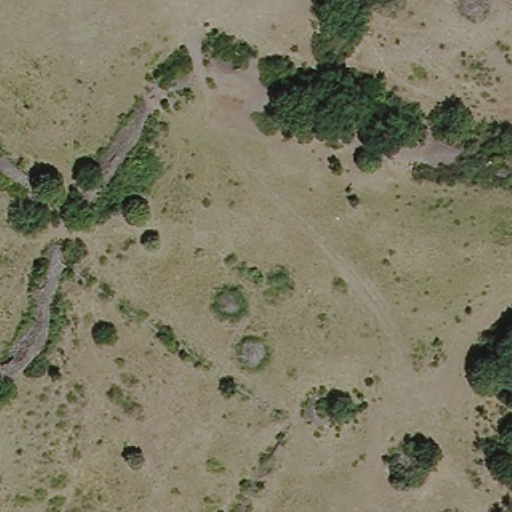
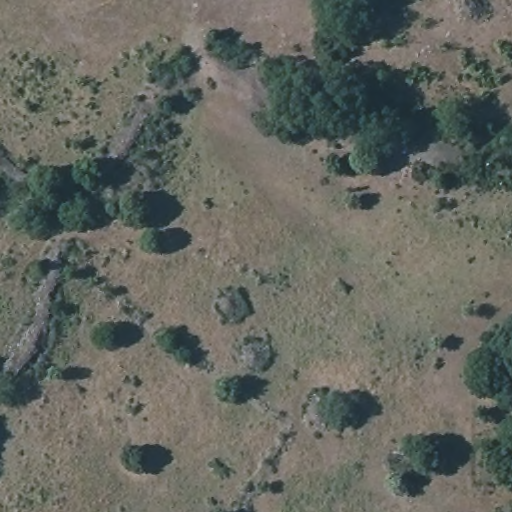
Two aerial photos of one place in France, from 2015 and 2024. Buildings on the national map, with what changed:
[]

